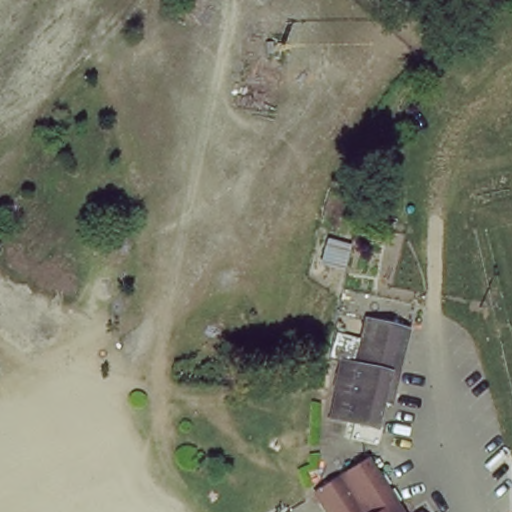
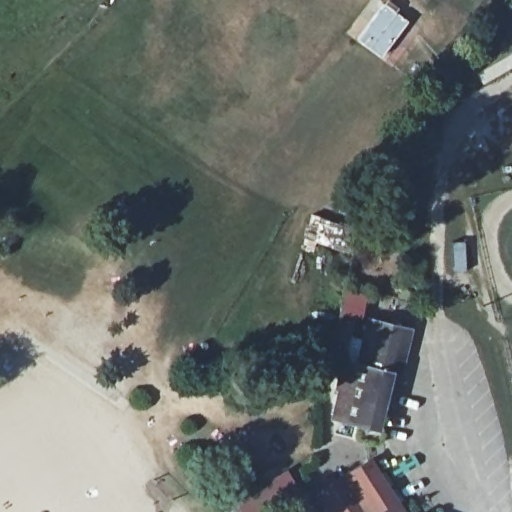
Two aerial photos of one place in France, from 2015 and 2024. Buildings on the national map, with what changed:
new [(381,56),(357,39),(384,3),(407,20),(381,56)]
unchanged [(382,422),(378,439),(353,433),(356,417),(332,412),(339,379),(351,381),(368,310),(399,318),(410,321),(392,400),(381,397),(376,420),(382,422)]
unchanged [(367,464),(398,512),(323,512),(314,496),(367,464)]

